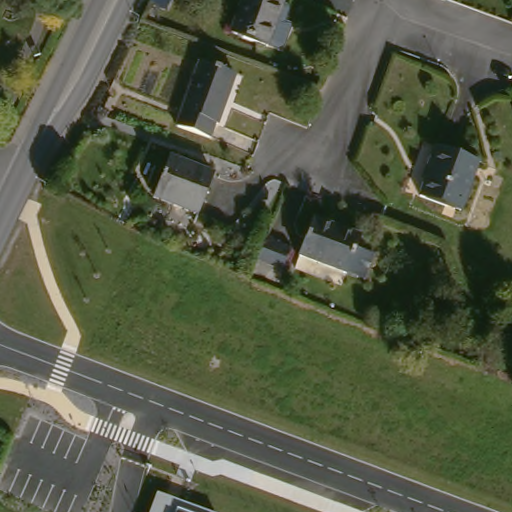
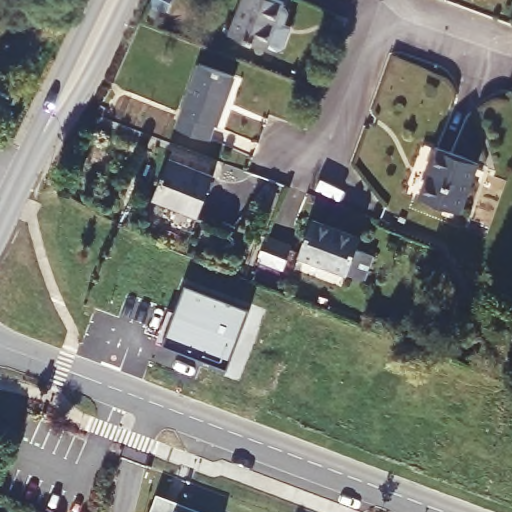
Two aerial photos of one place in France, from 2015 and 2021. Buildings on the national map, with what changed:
unchanged [(246,0),(282,0),(288,2),(272,44),(235,30),(246,0)]
unchanged [(200,62),(235,74),(218,124),(214,122),(210,137),(179,127),(200,62)]
unchanged [(422,195),(432,164),(429,162),(434,146),(480,162),(463,209),(422,195)]
unchanged [(156,199),(171,160),(213,177),(198,214),(156,199)]
unchanged [(297,244),(312,211),(356,232),(353,240),(372,249),(361,272),(343,264),(297,244)]
unchanged [(290,237),(282,258),(257,247),(265,227),(290,237)]
new [(187,283),(253,307),(231,368),(176,348),(179,341),(168,336),(187,283)]
unchanged [(207,512),(150,512),(156,494),(207,512)]

